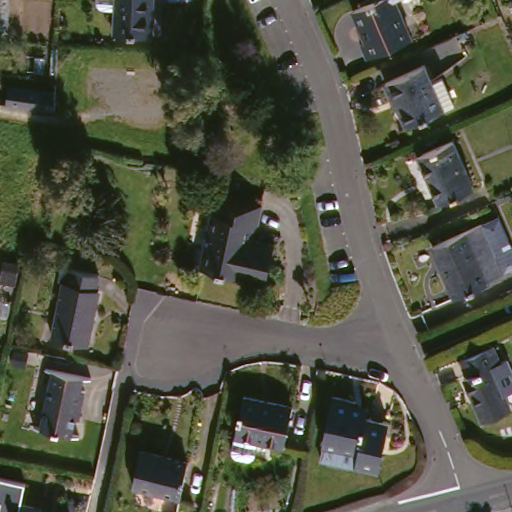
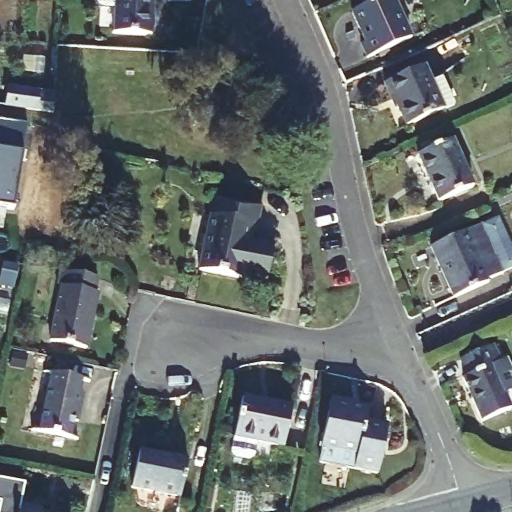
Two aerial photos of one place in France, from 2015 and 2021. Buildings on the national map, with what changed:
unchanged [(120,32),(122,0),(157,0),(155,34),(120,32)]
unchanged [(400,0),(416,35),(372,55),(364,39),(370,37),(357,8),(376,0),(400,0)]
unchanged [(431,81),(442,76),(455,102),(455,103),(445,108),(408,124),(397,103),(392,103),(383,84),(424,65),(431,81)]
unchanged [(57,94),(56,113),(25,109),(20,109),(20,91),(57,94)]
new [(27,126),(22,155),(13,209),(0,207),(0,121),(27,126)]
unchanged [(455,139),(476,185),(442,199),(421,154),(455,139)]
unchanged [(222,199),(268,208),(266,224),(256,223),(252,243),(281,248),(273,287),(207,274),(222,199)]
unchanged [(488,221),(511,270),(500,275),(500,277),(463,294),(439,244),(488,221)]
unchanged [(75,275),(103,280),(100,297),(102,297),(92,349),(59,343),(69,290),(72,290),(75,275)]
unchanged [(504,357),(495,362),(512,399),(512,406),(483,418),(465,376),(476,371),(469,353),(497,342),(504,357)]
unchanged [(89,381),(85,397),(93,399),(90,427),(85,427),(81,441),(50,435),(59,376),(89,381)]
unchanged [(244,397),(293,408),(287,444),(237,435),(244,397)]
unchanged [(338,399),(361,403),(360,407),(372,409),(370,418),(394,422),(385,472),(360,468),(362,454),(331,447),(338,399)]
unchanged [(139,452),(192,462),(184,502),(131,491),(139,452)]
unchanged [(24,485),(19,512),(0,512),(0,505),(0,479),(24,485)]
unchanged [(30,505),(51,509),(50,512),(28,512),(30,505)]

